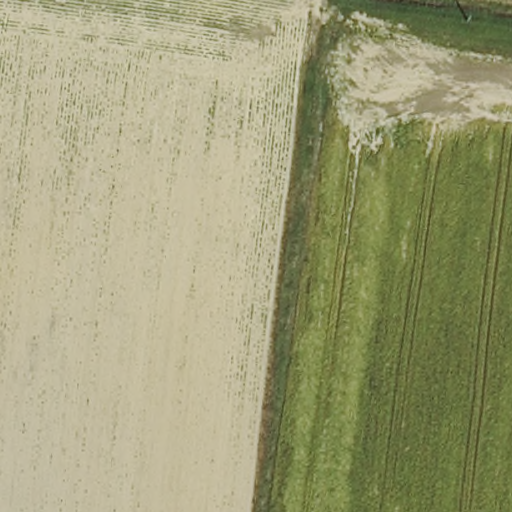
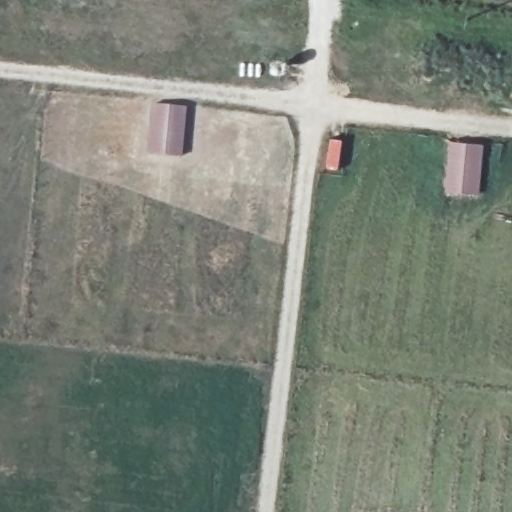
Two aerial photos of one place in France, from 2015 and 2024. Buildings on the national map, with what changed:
new [(151,102),(187,105),(182,157),(146,154),(151,102)]
new [(447,141),(484,144),(479,195),(442,193),(447,141)]

